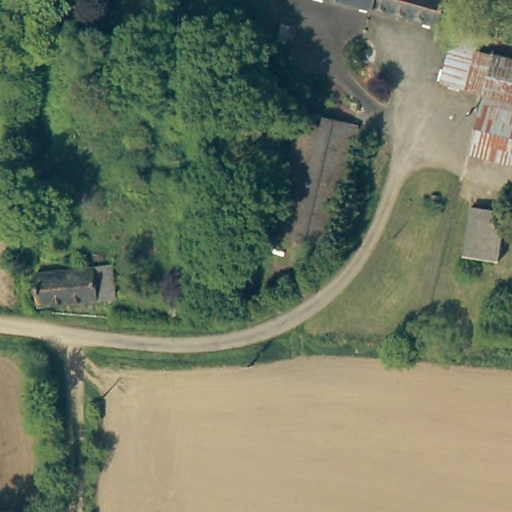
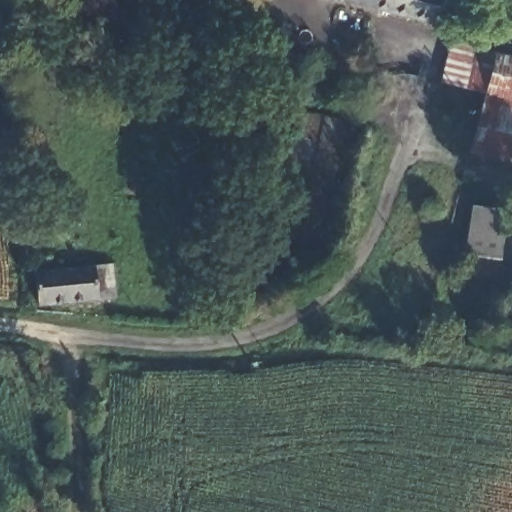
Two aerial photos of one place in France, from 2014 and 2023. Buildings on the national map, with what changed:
unchanged [(333,0),(447,0),(440,26),(333,0)]
unchanged [(486,93),(467,88),(441,82),(455,28),(480,35),(476,50),(495,55),(512,60),(512,160),(472,148),(486,93)]
unchanged [(325,249),(266,235),(295,111),(353,125),(325,249)]
unchanged [(282,130),(275,165),(260,162),(267,127),(282,130)]
unchanged [(431,194),(440,195),(440,203),(430,202),(431,194)]
unchanged [(466,205),(502,210),(495,262),(460,257),(466,205)]
unchanged [(39,236),(25,236),(23,220),(39,220),(39,236)]
unchanged [(260,257),(254,288),(239,286),(245,254),(260,257)]
unchanged [(35,274),(111,265),(116,298),(40,306),(35,274)]

